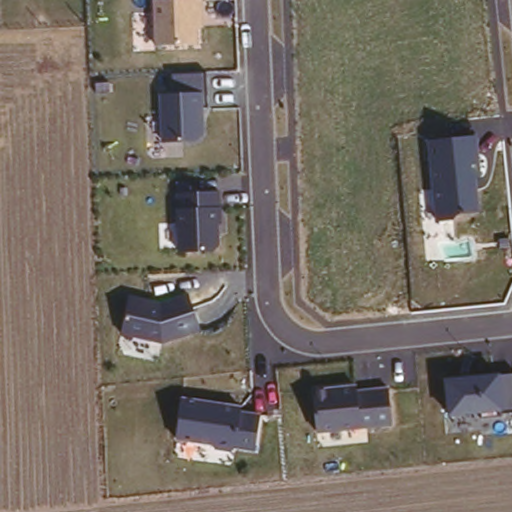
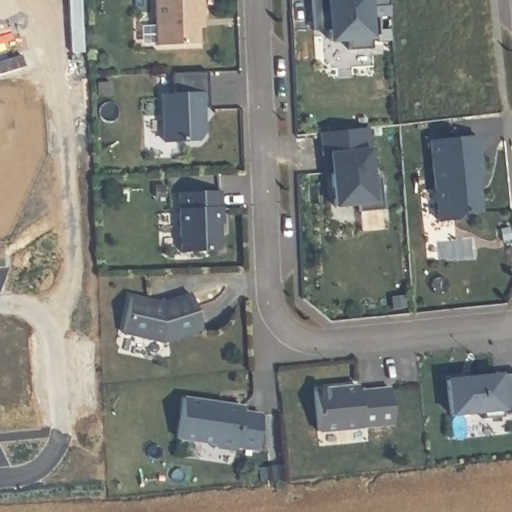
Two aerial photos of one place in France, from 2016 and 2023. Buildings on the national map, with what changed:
unchanged [(151,0),(202,0),(203,29),(197,29),(197,45),(152,46),(151,0)]
new [(401,4),(381,7),(384,39),(362,41),(360,30),(342,32),(341,20),(325,22),(323,0),(401,0),(401,4)]
new [(0,76),(0,32),(19,66),(0,76)]
unchanged [(206,72),(207,108),(201,108),(200,92),(170,93),(169,74),(206,72)]
unchanged [(157,94),(200,92),(203,133),(198,141),(160,142),(157,94)]
new [(363,123),(370,173),(378,172),(382,204),(360,207),(358,199),(335,201),(330,168),(325,170),(319,129),(363,123)]
unchanged [(476,136),(482,181),(477,181),(480,210),(463,211),(455,221),(433,224),(426,142),(476,136)]
unchanged [(175,193),(219,192),(221,223),(216,223),(219,250),(180,252),(175,193)]
unchanged [(201,330),(162,344),(121,334),(130,296),(162,302),(187,294),(201,330)]
unchanged [(479,418),(478,414),(448,417),(445,380),(512,371),(512,415),(479,418)]
unchanged [(392,426),(316,432),(312,388),(357,383),(358,392),(387,389),(392,426)]
unchanged [(244,405),(242,411),(261,413),(256,452),(236,449),(231,453),(214,449),(211,445),(176,440),(181,395),(244,405)]

